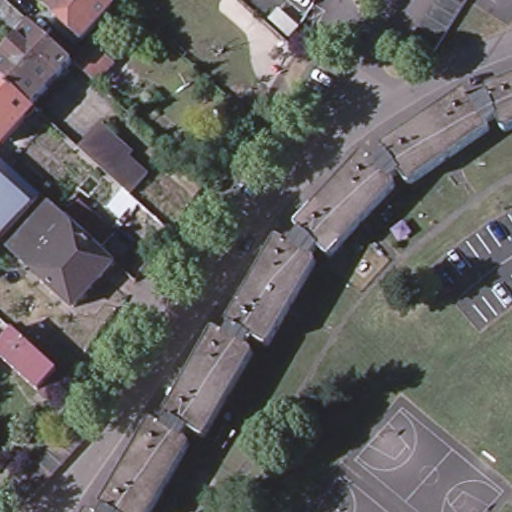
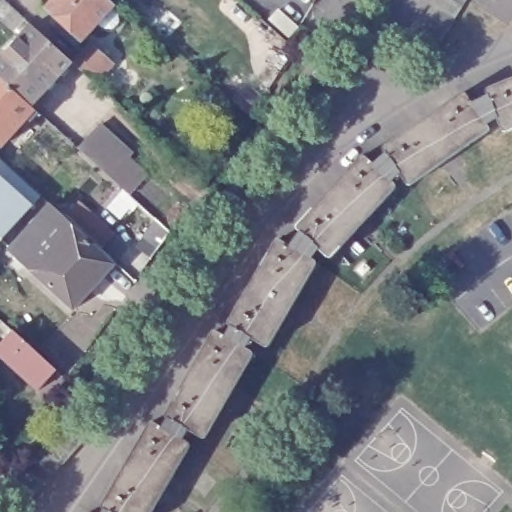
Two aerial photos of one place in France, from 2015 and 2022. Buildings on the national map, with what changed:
unchanged [(48,29),(53,22),(40,11),(49,0),(99,0),(106,7),(75,42),(73,40),(66,46),(48,29)]
unchanged [(424,12),(431,1),(431,0),(461,0),(460,1),(452,14),(445,25),(438,37),(431,48),(409,34),(416,24),(424,12)]
unchanged [(99,62),(94,68),(99,72),(88,85),(85,83),(76,93),(55,74),(24,107),(0,85),(0,54),(24,28),(64,64),(67,67),(83,48),(99,62)]
unchanged [(96,512),(101,503),(98,501),(148,417),(159,423),(164,415),(159,412),(210,326),(223,333),(229,323),(223,320),(276,237),(289,244),(298,229),(293,224),(361,152),(373,163),(383,153),(379,147),(462,91),(472,105),(485,96),(482,87),(512,76),(512,126),(499,131),(494,118),(484,123),(489,130),(406,185),(397,172),(389,179),(397,186),(328,257),(314,245),(308,256),(316,261),(264,345),(248,335),(242,345),(251,350),(201,436),(183,426),(178,434),(188,440),(144,512),(82,512),(86,506),(96,512)]
unchanged [(0,85),(24,107),(29,112),(0,143),(0,85)]
unchanged [(128,192),(108,174),(78,146),(99,121),(131,149),(126,155),(145,172),(128,192)]
unchanged [(0,235),(0,166),(35,198),(0,235)]
unchanged [(65,214),(78,196),(114,228),(99,246),(65,214)]
unchanged [(11,248),(50,203),(114,261),(74,304),(73,306),(9,250),(11,248)]
unchanged [(65,378),(47,398),(0,354),(0,336),(9,327),(65,378)]
unchanged [(23,463),(31,454),(40,444),(49,433),(58,424),(67,413),(76,403),(98,421),(88,431),(79,442),(70,452),(61,462),(52,472),(43,482),(33,492),(25,502),(5,484),(13,475),(23,463)]

